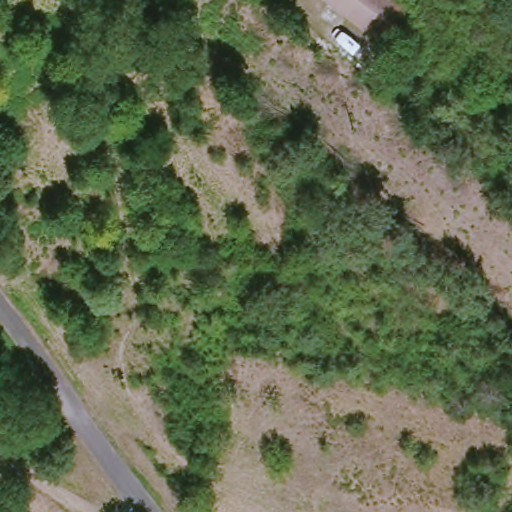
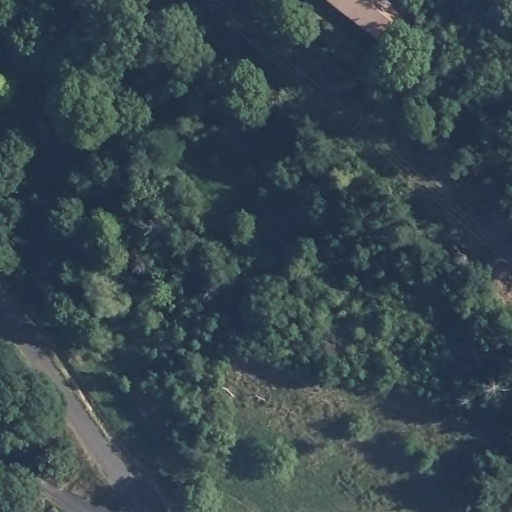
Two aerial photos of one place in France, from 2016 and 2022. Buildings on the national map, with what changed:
unchanged [(424,13),(394,50),(333,0),(408,0),(424,13)]

